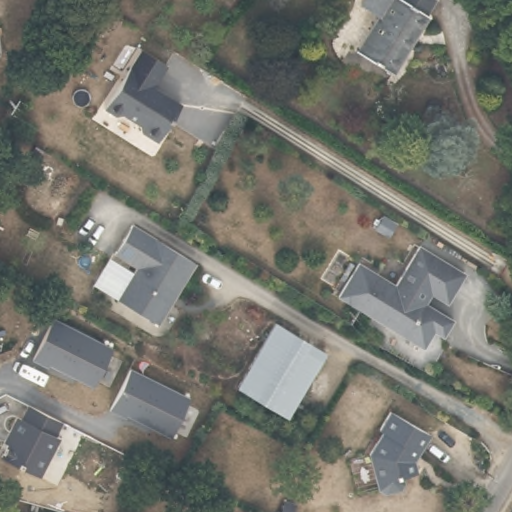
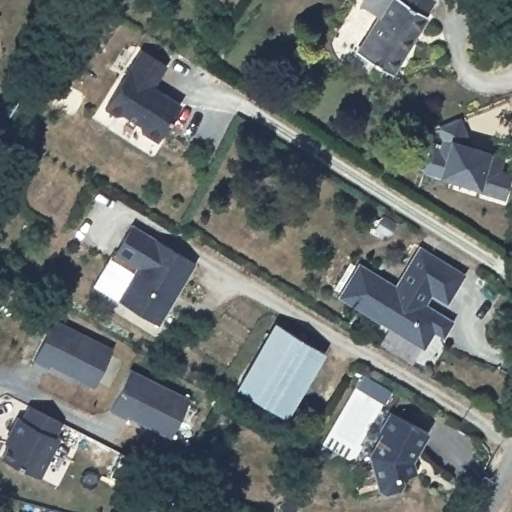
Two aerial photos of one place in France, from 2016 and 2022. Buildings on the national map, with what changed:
unchanged [(377,20),(355,7),(360,0),(441,0),(443,2),(395,81),(354,52),(377,20)]
unchanged [(165,89),(167,86),(183,97),(170,119),(117,86),(144,42),(169,57),(155,82),(165,89)]
unchanged [(160,136),(144,126),(141,119),(125,108),(117,110),(107,103),(117,86),(170,119),(160,136)]
new [(494,174),(506,178),(499,200),(472,191),(473,188),(421,171),(428,151),(438,154),(442,142),(436,127),(455,120),(466,149),(494,158),(498,160),(494,174)]
unchanged [(160,329),(115,303),(134,271),(114,259),(131,229),(196,267),(160,329)]
unchanged [(392,285),(400,271),(416,244),(461,272),(445,298),(443,301),(423,289),(417,300),(449,319),(439,335),(430,330),(420,347),(336,296),(356,263),(392,285)]
unchanged [(51,319),(112,350),(93,386),(47,363),(46,366),(31,360),(51,319)]
unchanged [(284,421),(233,387),(275,324),(324,356),(284,421)]
unchanged [(186,397),(168,437),(125,414),(122,418),(110,411),(128,369),(186,397)]
unchanged [(393,484),(381,487),(375,483),(372,470),(371,468),(366,448),(379,426),(376,422),(387,405),(424,428),(414,444),(411,442),(407,449),(411,467),(397,470),(399,478),(396,481),(395,482),(393,484)]
unchanged [(60,420),(54,436),(58,438),(39,477),(0,457),(0,454),(28,406),(60,420)]

